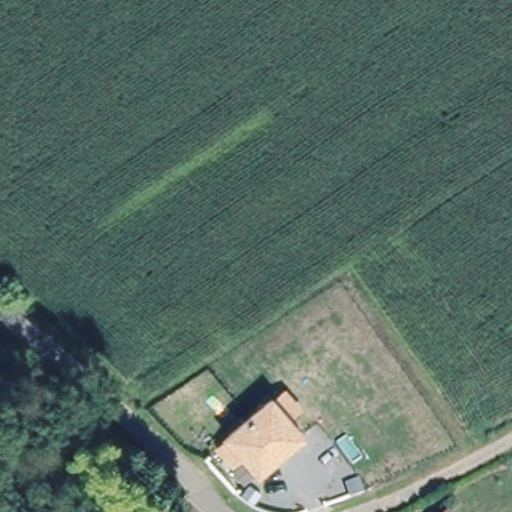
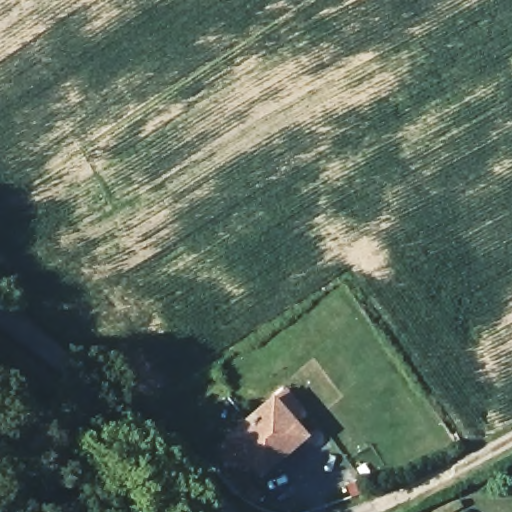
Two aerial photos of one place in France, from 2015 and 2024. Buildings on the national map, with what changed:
unchanged [(260,405),(294,443),(229,503),(195,467),(260,405)]

